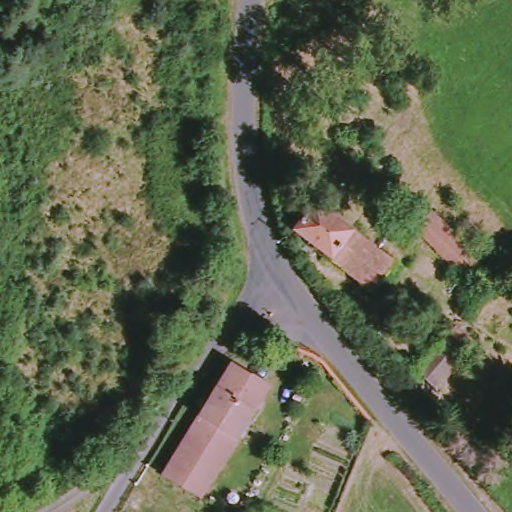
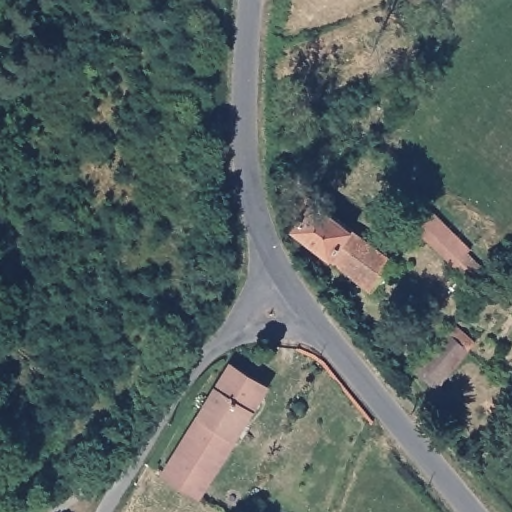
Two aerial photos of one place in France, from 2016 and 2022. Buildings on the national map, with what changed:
unchanged [(321,202),(402,267),(378,295),(297,231),(321,202)]
unchanged [(422,230),(439,214),(488,263),(472,277),(422,230)]
unchanged [(460,324),(478,342),(438,387),(422,375),(460,324)]
unchanged [(168,474),(240,363),(274,387),(204,498),(168,474)]

